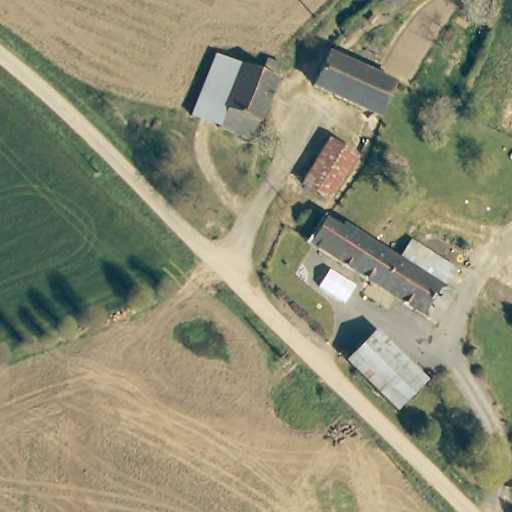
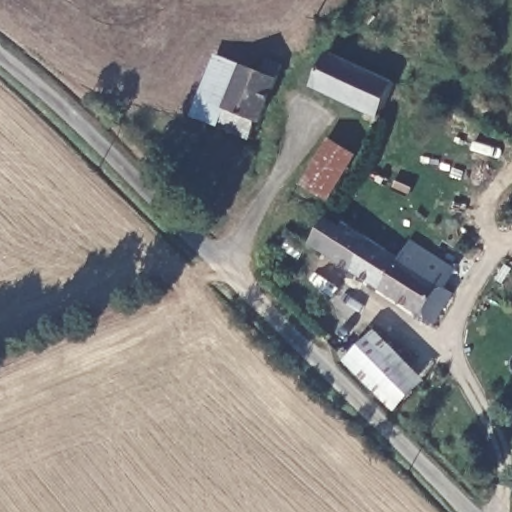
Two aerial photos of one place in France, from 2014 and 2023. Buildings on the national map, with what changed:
unchanged [(327,56),(392,85),(392,86),(377,118),(311,89),(327,56)]
unchanged [(253,122),(245,141),(217,130),(239,67),(261,76),(267,57),(282,62),(275,81),(260,125),(253,122)]
unchanged [(194,120),(217,59),(239,67),(217,130),(194,120)]
unchanged [(330,201),(301,185),(327,142),(355,158),(330,201)]
unchanged [(427,327),(307,243),(325,218),(328,220),(330,221),(341,228),(342,225),(398,265),(408,249),(450,276),(440,294),(446,298),(427,327)]
unchanged [(345,365),(368,336),(398,362),(376,391),(345,365)]
unchanged [(423,382),(400,411),(376,391),(398,362),(423,382)]

